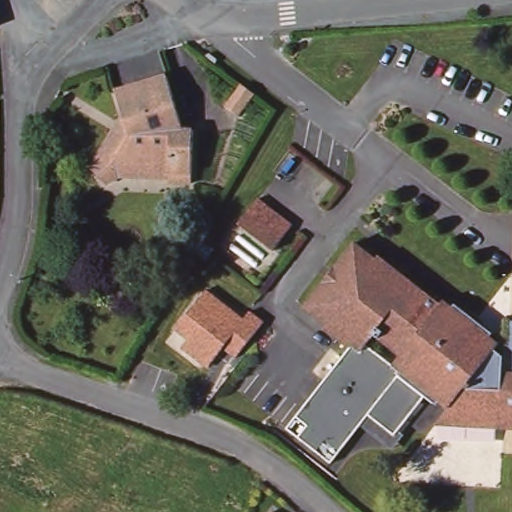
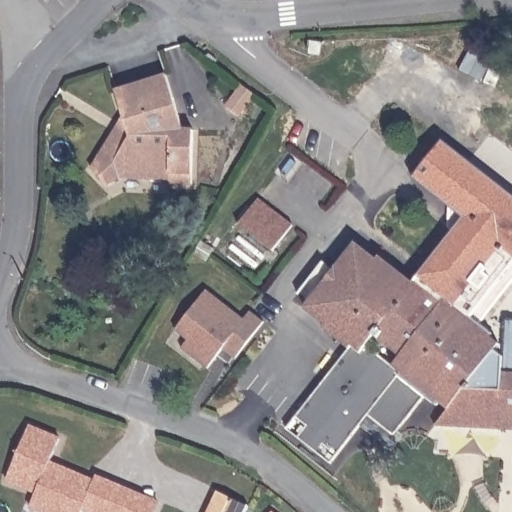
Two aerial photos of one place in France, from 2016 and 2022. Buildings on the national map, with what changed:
unchanged [(161,73),(178,127),(188,126),(187,180),(164,180),(163,177),(117,175),(104,184),(93,169),(109,136),(119,115),(111,89),(161,73)]
unchanged [(235,80),(244,88),(227,108),(215,97),(231,77),(235,80)]
new [(412,179),(443,142),(512,197),(512,283),(476,327),(449,304),(446,308),(438,300),(435,304),(426,297),(410,283),(462,217),(412,179)]
unchanged [(293,224),(274,244),(243,219),(260,198),(293,224)]
unchanged [(455,422),(446,414),(443,418),(415,393),(406,404),(387,426),(356,400),(317,447),(278,414),(274,411),(288,393),(321,354),(334,338),(308,315),(311,312),(304,305),(355,244),(363,250),(366,246),(392,268),(389,272),(396,278),(399,274),(435,304),(438,300),(446,308),(449,304),(500,347),(497,351),(507,359),(504,363),(509,367),(508,379),(512,379),(512,438),(507,438),(457,434),(444,434),(448,429),(455,422)]
unchanged [(241,318),(247,310),(260,320),(232,356),(219,346),(204,364),(178,344),(184,337),(173,328),(204,288),(241,318)]
new [(19,423),(50,435),(41,459),(85,476),(87,472),(150,497),(144,512),(92,512),(74,505),(72,512),(31,512),(20,508),(28,489),(0,478),(0,473),(19,423)]
unchanged [(272,511),(274,512),(271,512),(272,511)]

